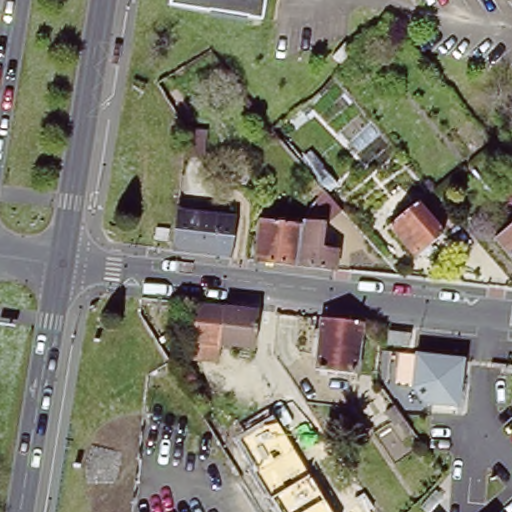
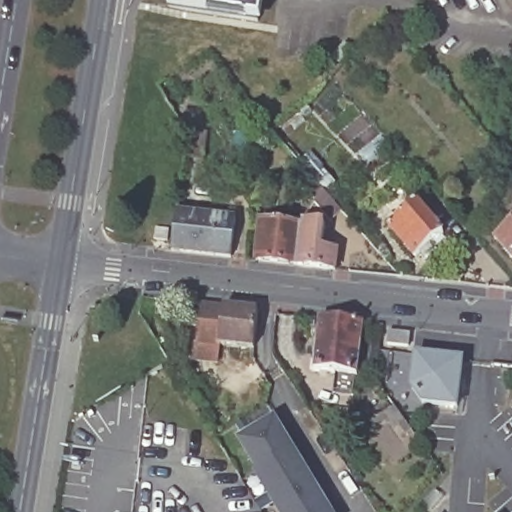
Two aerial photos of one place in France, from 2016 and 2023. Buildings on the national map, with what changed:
unchanged [(167,5),(168,0),(262,0),(260,19),(167,5)]
unchanged [(322,220),(305,202),(308,195),(298,191),(302,179),(310,188),(332,210),(322,220)]
unchanged [(418,201),(445,232),(433,243),(437,247),(426,256),(422,252),(417,256),(390,225),(418,201)]
unchanged [(176,212),(233,220),(228,261),(171,254),(176,212)]
unchanged [(251,264),(256,222),(297,228),(291,269),(251,264)]
unchanged [(297,228),(297,222),(320,226),(317,250),(332,252),(330,273),(291,269),(297,228)]
unchanged [(512,264),(492,241),(512,223),(512,264)]
unchanged [(191,358),(193,339),(198,302),(259,309),(255,347),(217,342),(215,361),(191,358)]
unchanged [(363,327),(358,369),(315,364),(320,322),(363,327)]
unchanged [(460,406),(423,404),(409,382),(378,380),(382,350),(465,358),(460,406)]
new [(275,419),(294,449),(262,469),(243,438),(275,419)]
new [(262,469),(294,449),(310,475),(273,497),(258,471),(262,469)]
new [(310,475),(325,500),(305,512),(283,512),(273,497),(310,475)]
new [(325,500),(332,512),(305,512),(325,500)]

